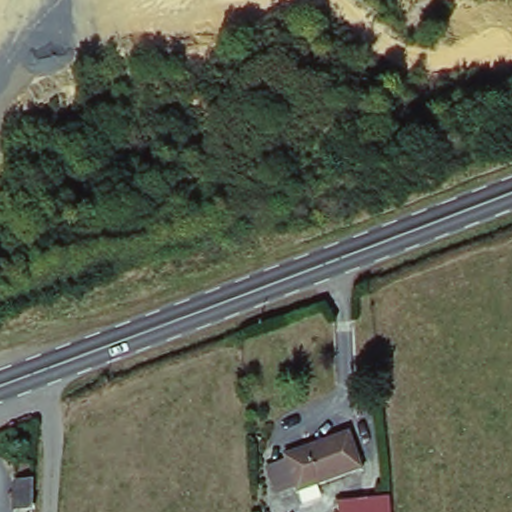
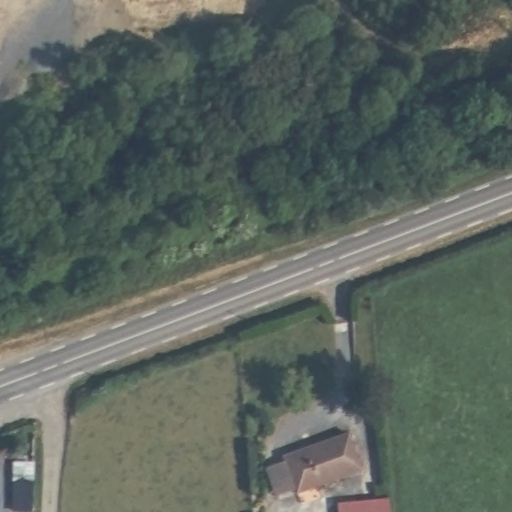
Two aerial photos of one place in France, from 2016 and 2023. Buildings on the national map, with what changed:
unchanged [(346,436),(360,473),(295,498),(281,460),(346,436)]
unchanged [(27,512),(12,512),(12,483),(29,483),(27,512)]
unchanged [(335,512),(335,504),(386,499),(387,512),(335,512)]

